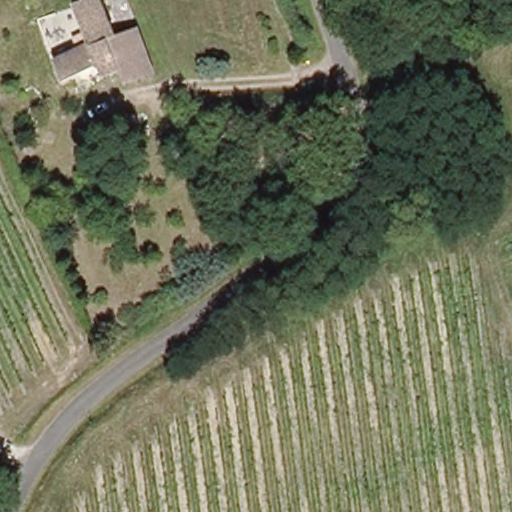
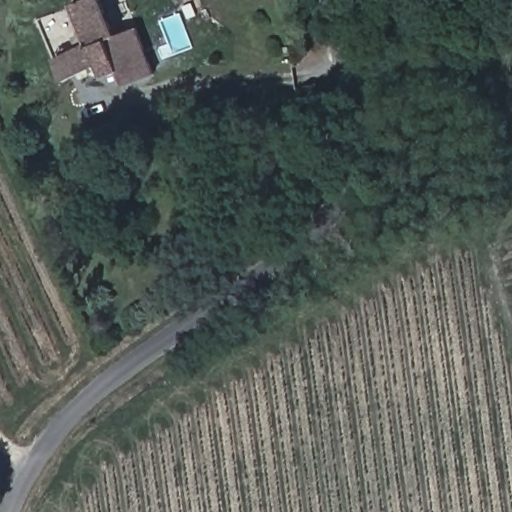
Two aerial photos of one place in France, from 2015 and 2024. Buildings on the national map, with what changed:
unchanged [(116,33),(137,24),(156,71),(127,83),(119,69),(103,74),(74,1),(77,0),(103,0),(116,33)]

